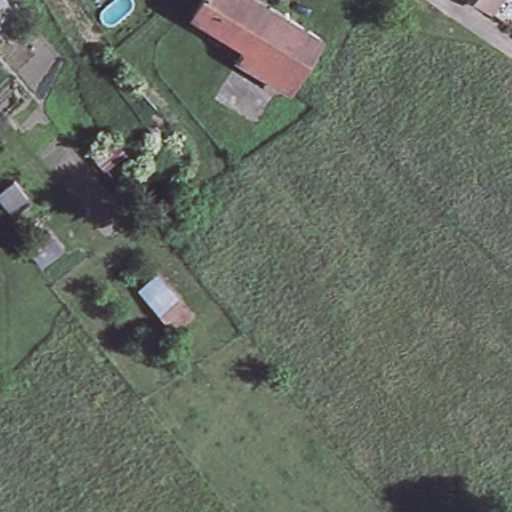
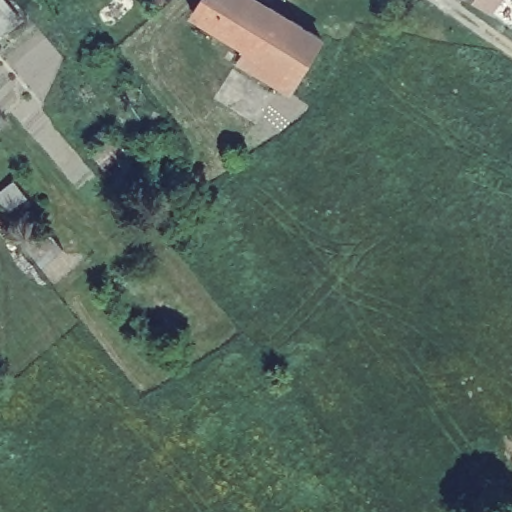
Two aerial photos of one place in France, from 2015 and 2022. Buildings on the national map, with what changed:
unchanged [(0,35),(0,0),(7,0),(22,18),(0,35)]
unchanged [(197,10),(203,0),(253,0),(233,32),(197,10)]
unchanged [(326,32),(294,84),(242,53),(249,42),(233,32),(253,0),(271,0),(326,32)]
unchanged [(483,0),(512,0),(512,21),(511,22),(492,7),(483,0)]
unchanged [(116,135),(142,172),(120,186),(94,154),(116,135)]
unchanged [(0,206),(0,192),(13,182),(21,175),(34,192),(26,198),(6,214),(0,206)]
unchanged [(46,231),(61,249),(39,266),(24,248),(46,231)]
unchanged [(159,273),(193,316),(171,332),(138,289),(159,273)]

